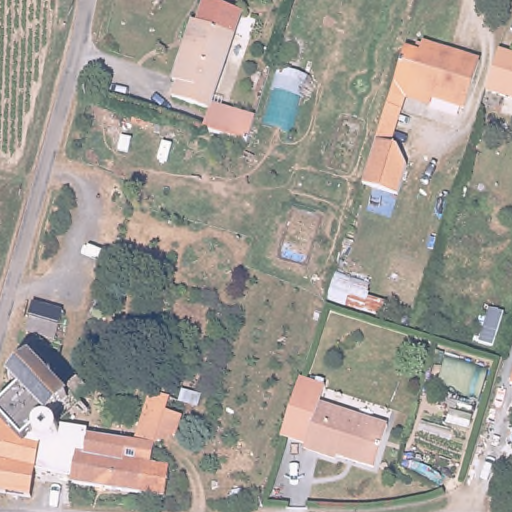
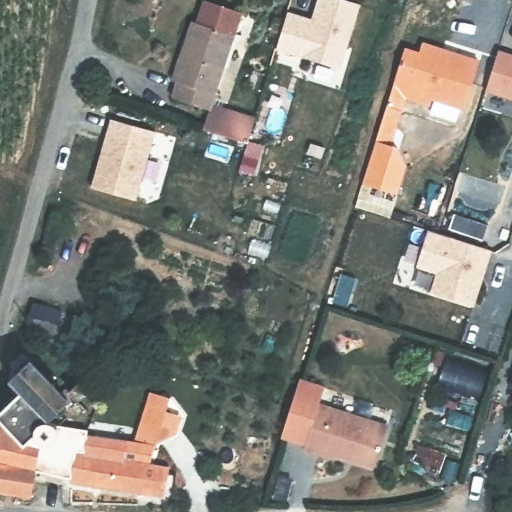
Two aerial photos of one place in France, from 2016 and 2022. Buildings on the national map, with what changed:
unchanged [(172,95),(176,80),(172,79),(189,18),(194,19),(199,0),(215,0),(237,6),(212,103),(262,116),(252,145),(205,130),(211,105),(172,95)]
new [(274,49),(286,10),(312,18),(317,0),(347,0),(360,4),(339,69),(274,49)]
unchanged [(512,51),(512,96),(485,88),(498,47),(512,51)]
unchanged [(414,60),(418,49),(474,68),(457,114),(425,103),(422,113),(403,106),(400,104),(384,99),(399,55),(414,60)]
unchanged [(368,147),(384,99),(400,104),(403,106),(387,153),(387,154),(368,147)]
new [(135,202),(90,188),(110,119),(155,131),(135,202)]
unchanged [(368,147),(387,154),(387,153),(390,154),(398,173),(389,202),(353,189),(358,178),(368,147)]
new [(474,308),(428,293),(434,274),(414,269),(427,229),(491,250),(474,308)]
unchanged [(47,361),(15,352),(22,327),(56,334),(47,361)]
unchanged [(4,422),(19,391),(7,384),(24,359),(62,383),(65,377),(70,380),(77,370),(86,376),(79,386),(76,384),(57,411),(59,413),(61,417),(61,423),(60,427),(46,441),(41,469),(39,484),(37,496),(0,493),(0,420),(4,422)]
unchanged [(319,405),(386,425),(373,467),(334,454),(332,460),(305,452),(307,444),(279,435),(299,376),(323,385),(319,405)]
unchanged [(156,486),(129,485),(101,484),(105,451),(116,452),(121,432),(136,434),(154,379),(175,387),(169,403),(184,408),(177,427),(157,436),(151,454),(157,455),(170,456),(168,486),(156,486)]
unchanged [(60,427),(67,429),(68,423),(86,427),(85,430),(80,451),(77,461),(72,476),(41,469),(46,441),(60,427)]
unchanged [(121,432),(116,452),(105,451),(101,484),(71,483),(72,476),(77,461),(80,451),(85,430),(121,432)]

